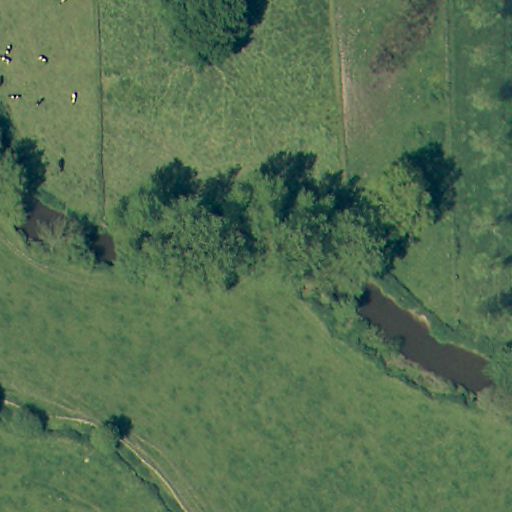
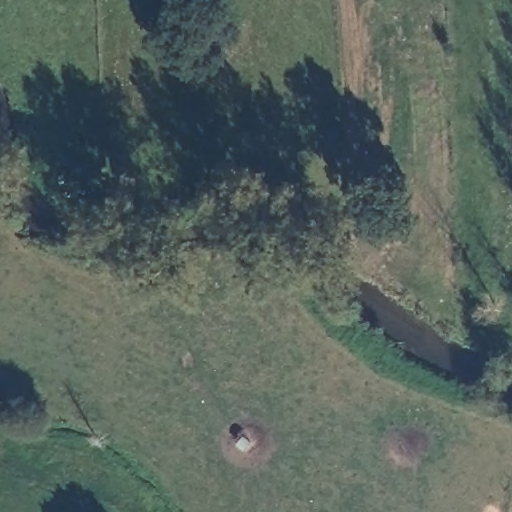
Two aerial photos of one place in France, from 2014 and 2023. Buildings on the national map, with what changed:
[]

